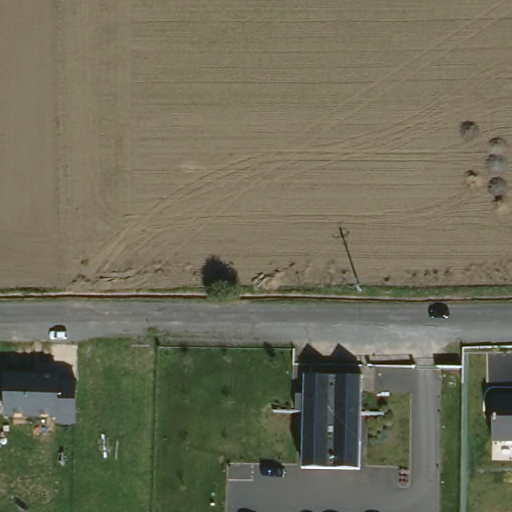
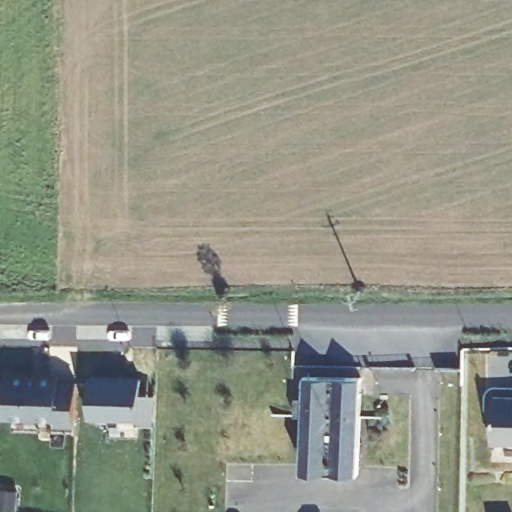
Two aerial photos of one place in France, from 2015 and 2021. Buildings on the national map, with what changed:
unchanged [(358,467),(300,465),(300,375),(360,372),(358,467)]
unchanged [(55,427),(55,420),(2,417),(4,375),(60,377),(60,384),(76,384),(75,426),(55,427)]
new [(86,415),(86,376),(137,377),(137,392),(153,392),(152,421),(136,421),(137,416),(86,415)]
unchanged [(495,399),(512,399),(512,443),(495,443),(495,399)]

